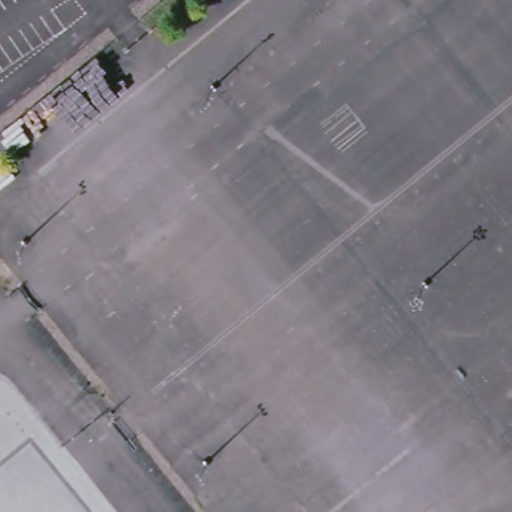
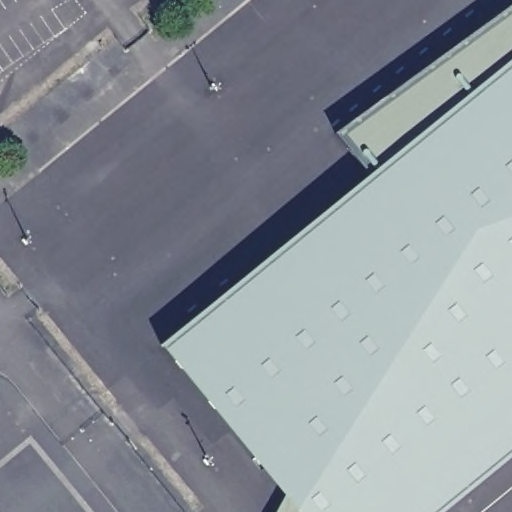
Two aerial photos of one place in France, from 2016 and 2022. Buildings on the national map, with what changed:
new [(162,345),(379,169),(343,130),(512,2),(512,450),(435,512),(304,512),(162,345)]

